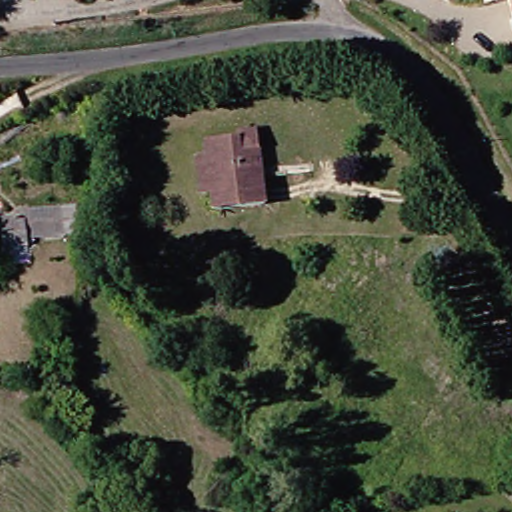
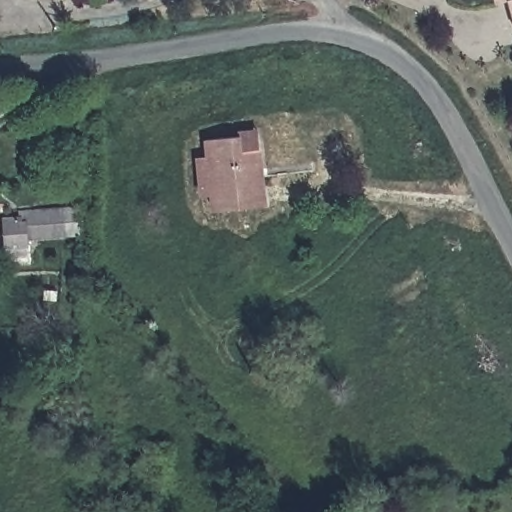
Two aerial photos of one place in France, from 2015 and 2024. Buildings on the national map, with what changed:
unchanged [(490,0),(502,0),(490,3),(490,0)]
unchanged [(512,0),(512,28),(504,0),(512,0)]
unchanged [(184,164),(200,161),(197,138),(230,134),(230,129),(247,128),(252,174),(255,201),(205,207),(204,195),(188,198),(184,164)]
unchanged [(18,243),(17,247),(0,248),(0,213),(7,212),(8,215),(54,208),(56,237),(18,243)]

